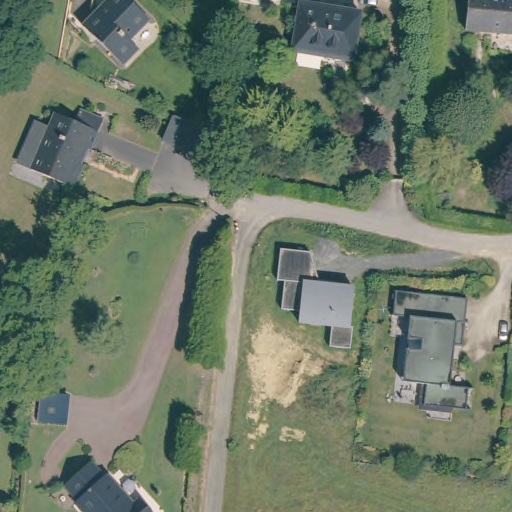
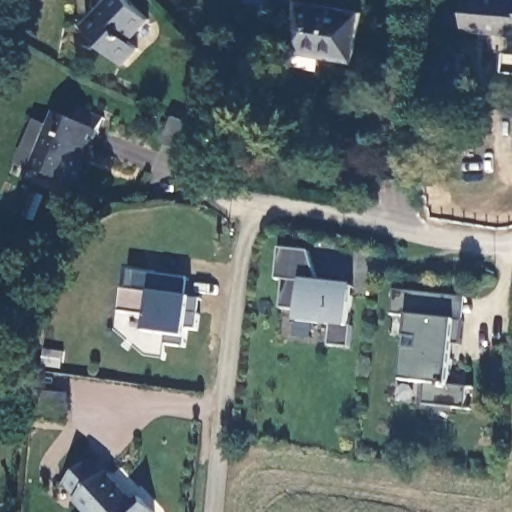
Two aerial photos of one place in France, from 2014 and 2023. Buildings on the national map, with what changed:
unchanged [(162,24),(144,45),(151,53),(135,69),(96,31),(126,0),(138,0),(162,24)]
unchanged [(325,2),(368,9),(361,58),(301,46),(309,0),(326,0),(325,2)]
unchanged [(471,0),(512,0),(512,30),(469,27),(471,0)]
unchanged [(34,151),(44,126),(57,132),(64,115),(84,124),(90,111),(113,122),(100,152),(94,149),(88,164),(93,166),(84,190),(40,172),(41,170),(28,165),(34,151)]
unchanged [(192,118),(209,123),(202,147),(176,140),(182,116),(192,118)]
unchanged [(310,252),(319,282),(353,287),(348,327),(351,328),(350,346),(329,345),(330,326),(297,323),(299,311),(282,310),(285,281),(278,279),(281,249),(310,252)]
new [(149,314),(120,311),(123,289),(128,289),(130,271),(188,278),(184,296),(193,298),(200,300),(197,328),(190,326),(188,337),(181,337),(183,345),(167,343),(163,334),(147,333),(149,314)]
unchanged [(409,374),(415,322),(398,320),(400,295),(455,301),(473,303),(470,327),(468,349),(453,347),(452,357),(458,364),(455,390),(474,392),(472,415),(429,410),(432,389),(416,387),(408,386),(409,374)]
unchanged [(73,498),(61,485),(87,461),(99,474),(102,474),(130,502),(136,498),(149,512),(81,512),(70,501),(73,498)]

